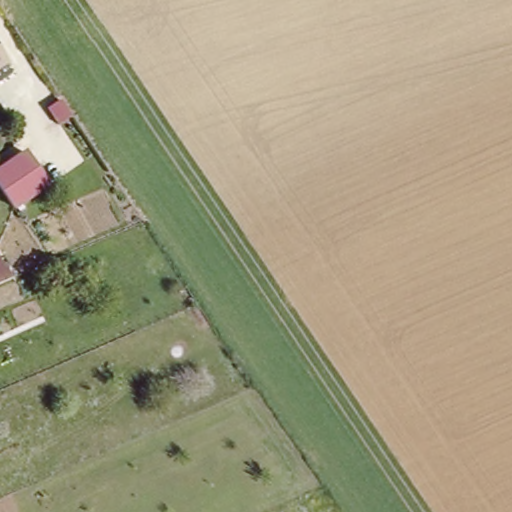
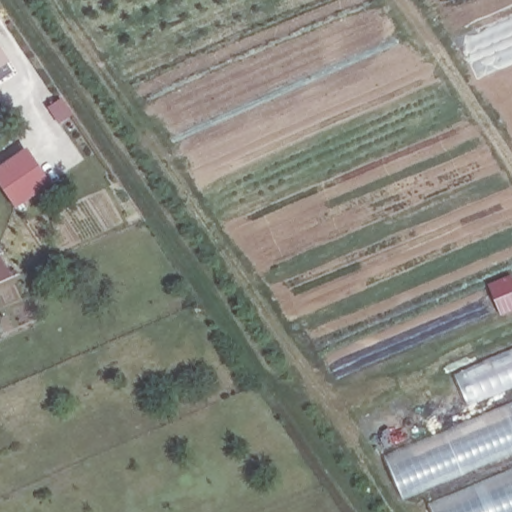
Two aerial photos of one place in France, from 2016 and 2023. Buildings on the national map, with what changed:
unchanged [(10,62),(0,69),(0,47),(10,62)]
unchanged [(52,187),(14,212),(0,191),(0,163),(26,146),(52,187)]
new [(512,356),(512,387),(468,405),(458,379),(512,356)]
new [(512,411),(512,451),(402,497),(388,463),(512,411)]
new [(512,478),(512,512),(432,512),(512,478)]

